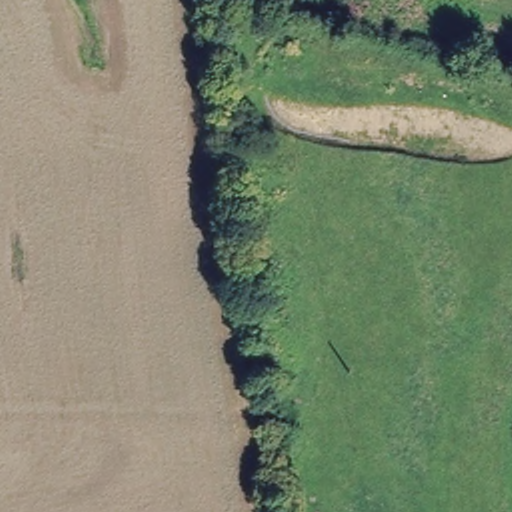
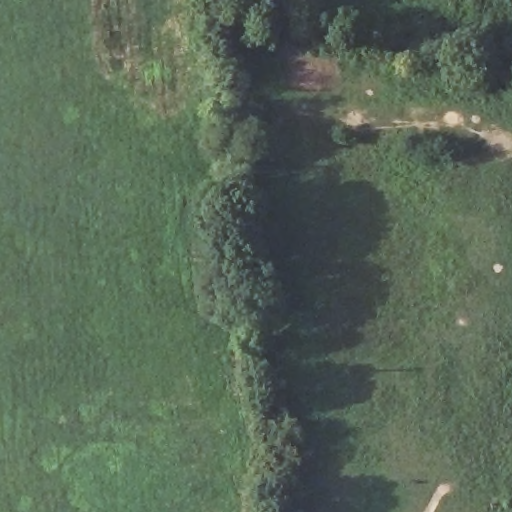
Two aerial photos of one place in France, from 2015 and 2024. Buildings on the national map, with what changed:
[]

